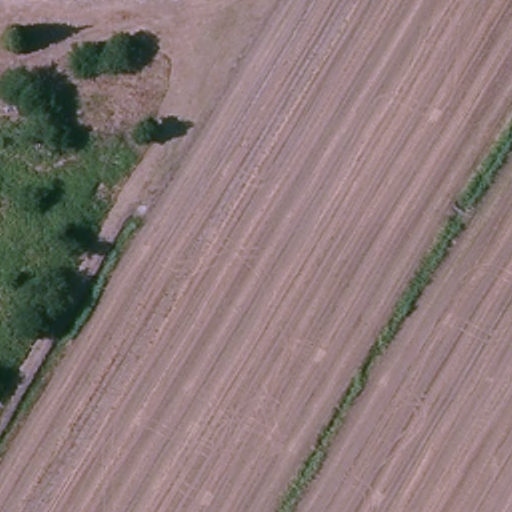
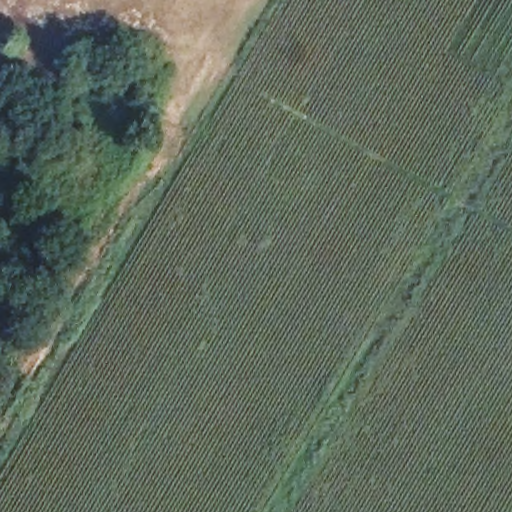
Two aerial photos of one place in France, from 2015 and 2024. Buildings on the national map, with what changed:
[]

